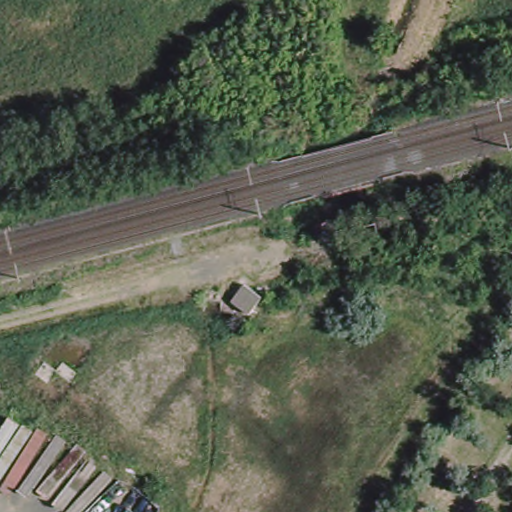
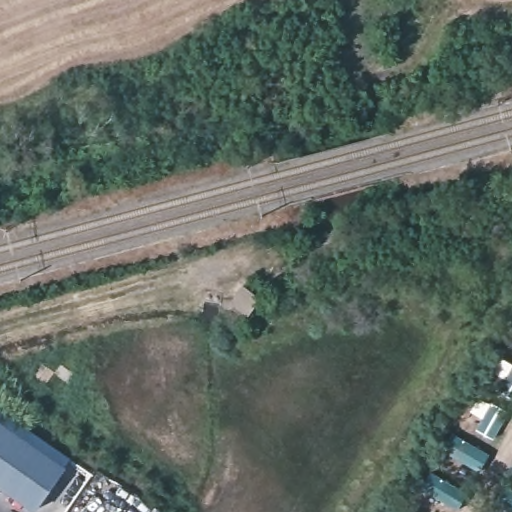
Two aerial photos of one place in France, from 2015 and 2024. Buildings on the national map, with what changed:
unchanged [(395,247),(360,257),(355,239),(366,235),(364,225),(374,222),(376,232),(390,229),(395,247)]
unchanged [(246,314),(226,300),(240,281),(260,296),(246,314)]
new [(68,466),(41,508),(0,483),(0,424),(68,466)]

